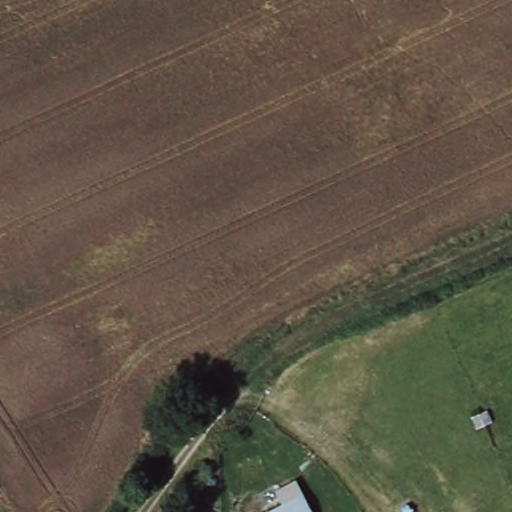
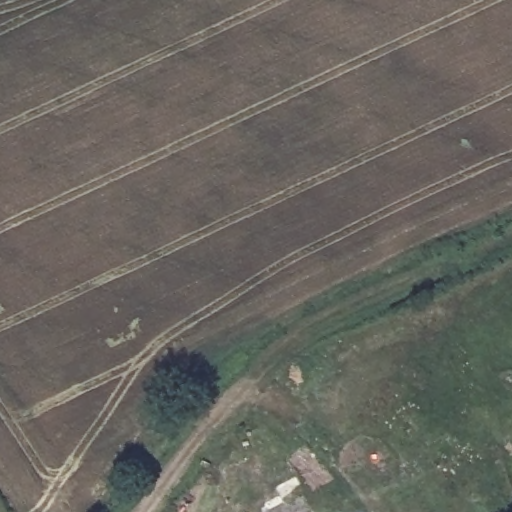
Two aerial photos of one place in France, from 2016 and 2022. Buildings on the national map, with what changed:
unchanged [(264,511),(304,490),(315,512),(265,512),(264,511)]

